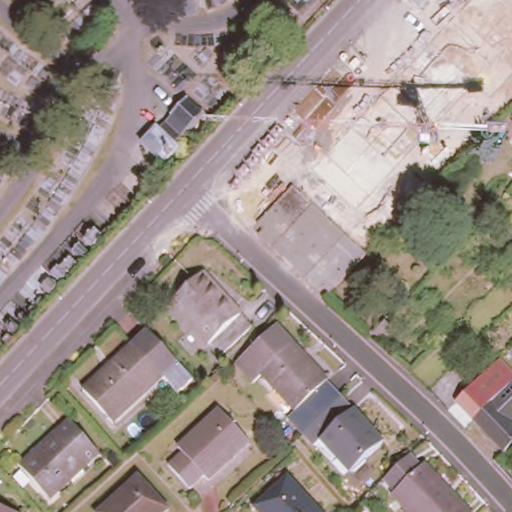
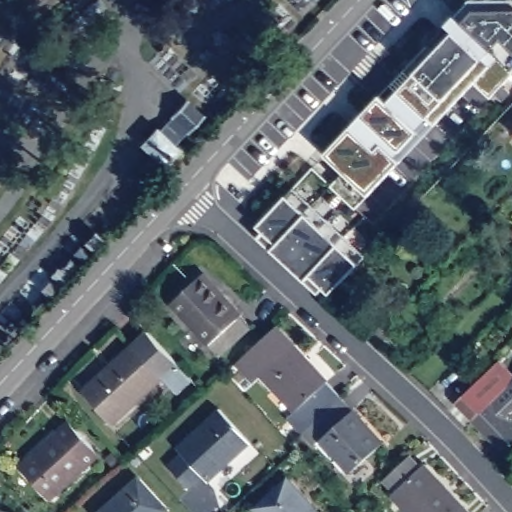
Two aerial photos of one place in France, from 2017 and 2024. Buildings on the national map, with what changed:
new [(477,74),(372,191),(326,151),(463,0),(512,0),(512,69),(493,89),(477,74)]
demolished [(448,112),(467,130),(450,149),(443,145),(437,150),(428,161),(406,140),(416,129),(397,110),(422,82),(452,109),(448,112)]
unchanged [(185,97),(202,112),(187,129),(170,112),(185,97)]
unchanged [(154,126),(177,147),(163,164),(140,142),(154,126)]
demolished [(286,241),(277,250),(255,230),(263,220),(272,210),(281,200),(290,190),(300,180),(308,170),(322,155),(325,159),(351,136),(357,135),(366,147),(365,152),(338,175),(342,179),(330,192),(321,202),(312,212),(303,221),(313,230),(325,240),(334,250),(345,260),(355,269),(336,289),(327,280),(315,270),(306,260),(295,250),(286,241)]
new [(367,253),(331,290),(326,286),(321,291),(296,268),(301,261),(292,253),(286,259),(260,235),(266,230),(260,224),(293,185),(367,253)]
unchanged [(214,343),(177,303),(210,274),(246,314),(257,326),(225,356),(214,343)]
unchanged [(387,321),(396,332),(386,342),(377,332),(387,321)]
unchanged [(253,378),(241,365),(281,328),(295,342),(258,373),(253,378)]
unchanged [(115,419),(86,387),(135,341),(165,373),(115,419)]
unchanged [(295,342),(323,374),(288,406),(258,373),(295,342)]
unchanged [(512,386),(472,422),(455,405),(499,360),(512,371),(512,386)]
unchanged [(353,408),(385,440),(350,473),(320,440),(313,445),(286,417),(326,381),(353,408)]
unchanged [(472,422),(512,386),(512,420),(512,444),(501,453),(472,422)]
unchanged [(167,466),(180,453),(175,448),(217,409),(247,442),(206,481),(202,477),(188,489),(167,466)]
unchanged [(22,462),(60,428),(71,417),(100,449),(87,460),(51,494),(22,462)]
unchanged [(395,490),(427,460),(462,498),(476,512),(414,512),(395,490)]
unchanged [(161,512),(97,512),(95,510),(135,473),(166,507),(161,512)]
unchanged [(256,506),(287,476),(320,512),(261,512),(256,506)]
unchanged [(6,512),(0,512),(0,510),(6,512)]

